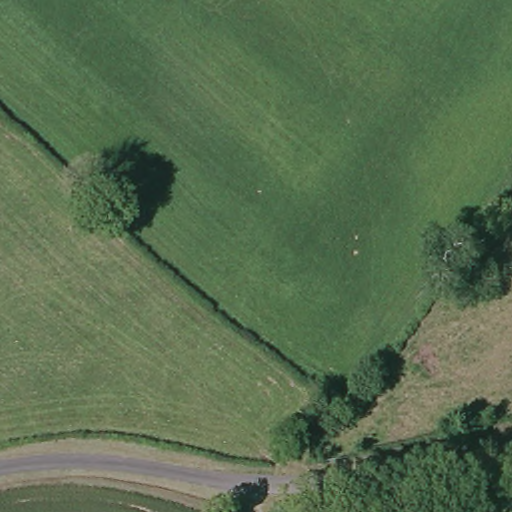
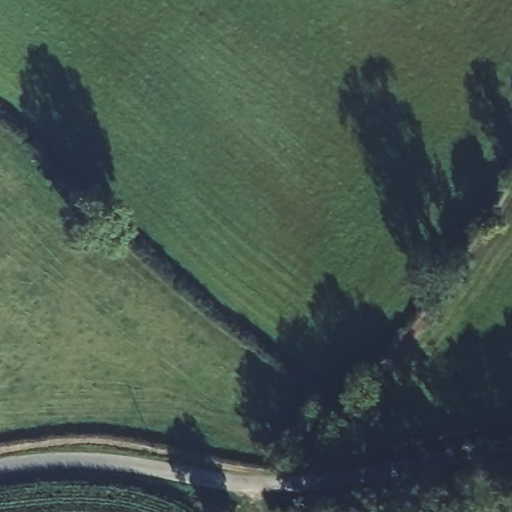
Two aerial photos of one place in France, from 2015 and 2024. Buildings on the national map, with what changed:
[]

